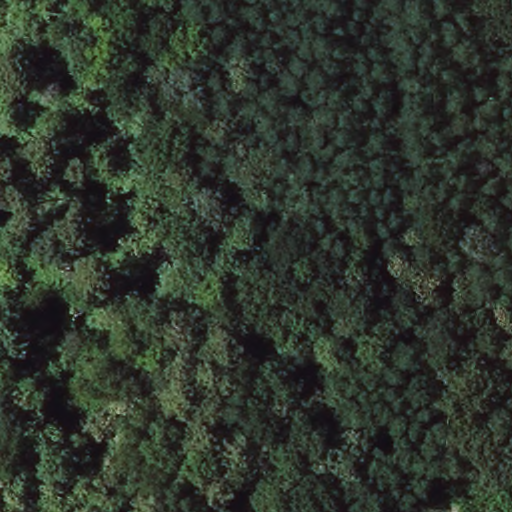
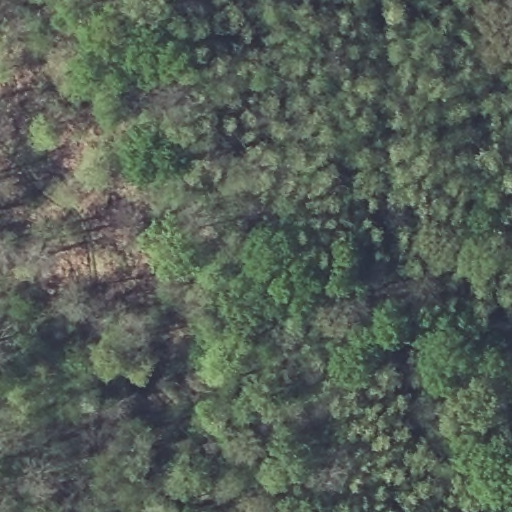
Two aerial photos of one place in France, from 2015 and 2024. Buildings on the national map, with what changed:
[]

